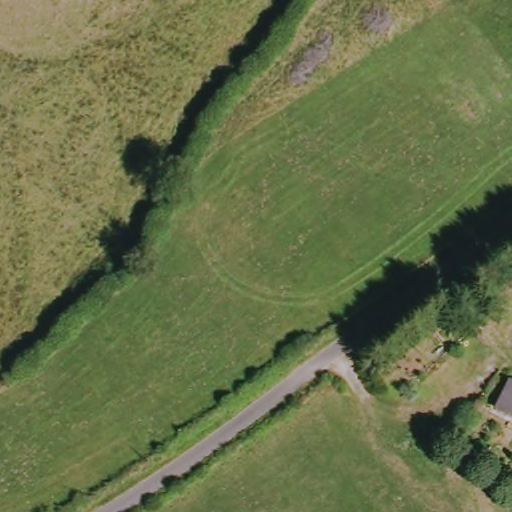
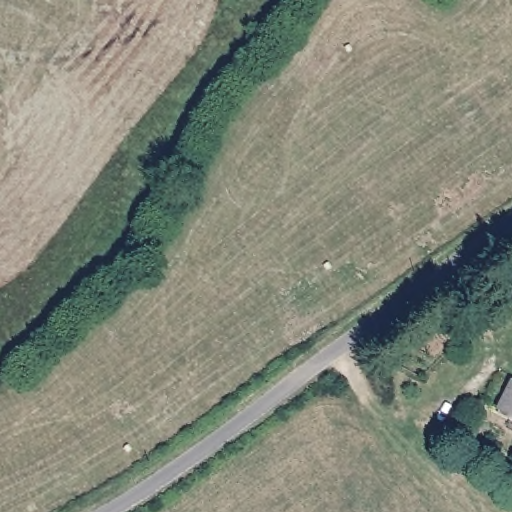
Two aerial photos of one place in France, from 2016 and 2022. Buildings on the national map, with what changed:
unchanged [(512,396),(512,415),(504,410),(512,396)]

